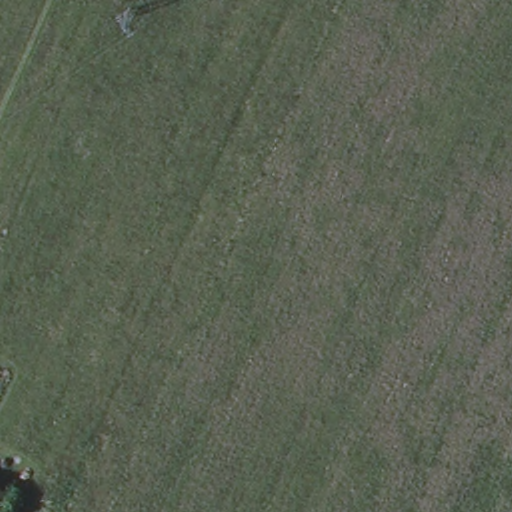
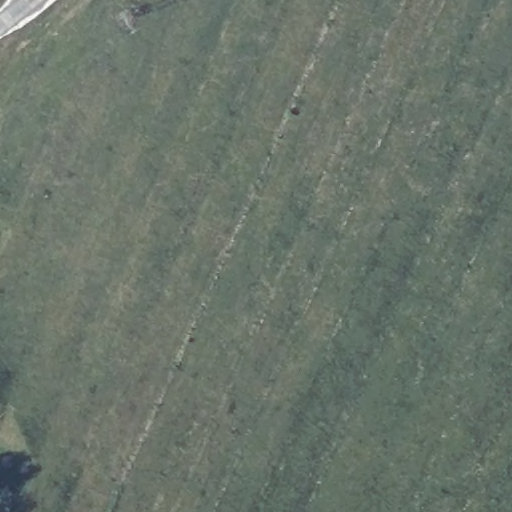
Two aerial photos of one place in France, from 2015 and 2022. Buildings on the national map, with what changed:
[]

